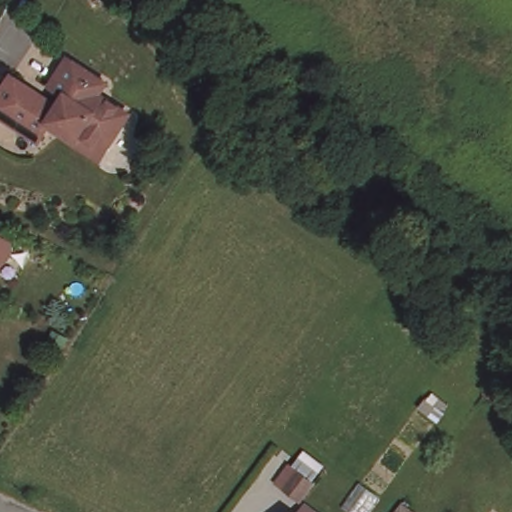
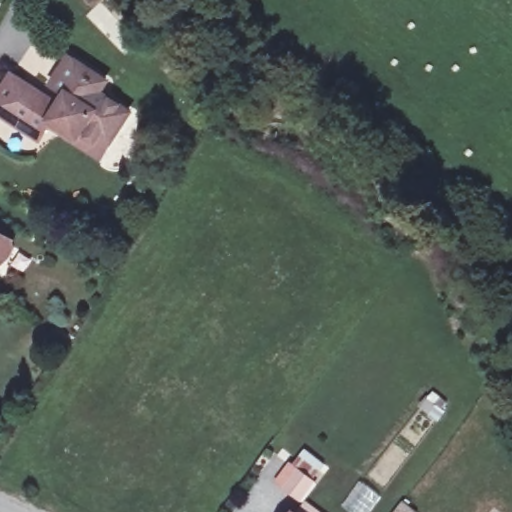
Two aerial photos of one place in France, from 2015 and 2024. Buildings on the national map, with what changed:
unchanged [(39,135),(0,109),(0,90),(12,71),(60,102),(67,90),(52,80),(70,53),(106,77),(99,89),(130,109),(105,146),(100,154),(48,120),(39,135)]
unchanged [(4,249),(0,255),(0,241),(1,242),(4,249)]
unchanged [(295,509),(270,491),(260,484),(273,466),(283,473),(307,491),(295,509)]
unchanged [(402,503),(414,512),(395,512),(402,503)]

